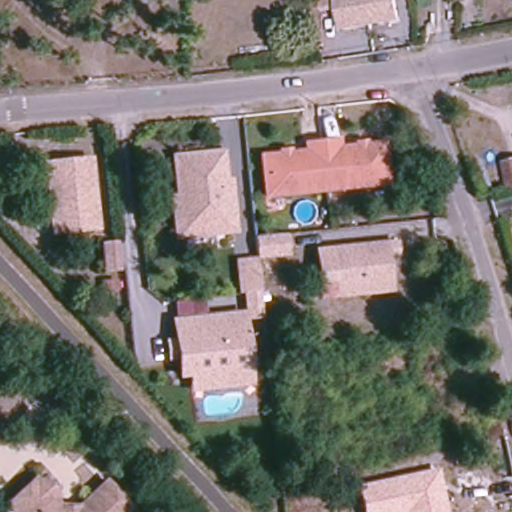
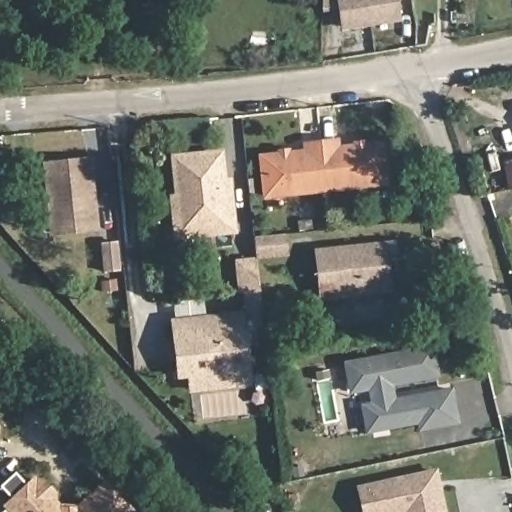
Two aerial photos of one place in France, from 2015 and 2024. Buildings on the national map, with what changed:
unchanged [(401,21),(341,31),(339,7),(322,7),(322,0),(399,0),(397,0),(401,21)]
unchanged [(263,157),(282,156),(282,152),(291,151),(291,155),(308,153),(307,146),(340,142),(341,150),(357,148),(357,145),(366,144),(366,147),(374,147),(385,145),(389,185),(371,187),(267,197),(263,157)]
unchanged [(171,239),(166,193),(174,193),(171,153),(222,148),(225,176),(232,176),(238,233),(171,239)]
unchanged [(86,161),(94,230),(50,235),(42,166),(86,161)]
unchanged [(512,189),(506,190),(500,166),(512,164),(512,189)]
unchanged [(288,256),(257,259),(263,318),(245,320),(253,386),(189,394),(187,376),(175,377),(168,317),(246,309),(244,291),(236,292),(234,256),(256,254),(254,233),(287,231),(288,256)]
unchanged [(397,258),(389,259),(392,293),(331,299),(330,285),(318,287),(314,248),(396,239),(397,258)]
unchanged [(117,271),(102,272),(99,246),(114,244),(117,271)]
new [(394,385),(396,396),(453,385),(460,422),(420,429),(419,422),(364,432),(359,404),(371,401),(369,390),(348,394),(341,360),(435,340),(441,375),(394,385)]
unchanged [(363,512),(358,484),(439,468),(448,512),(363,512)]
unchanged [(46,479),(57,491),(59,502),(72,501),(98,477),(106,480),(135,511),(134,512),(7,512),(1,507),(31,473),(37,478),(46,479)]

